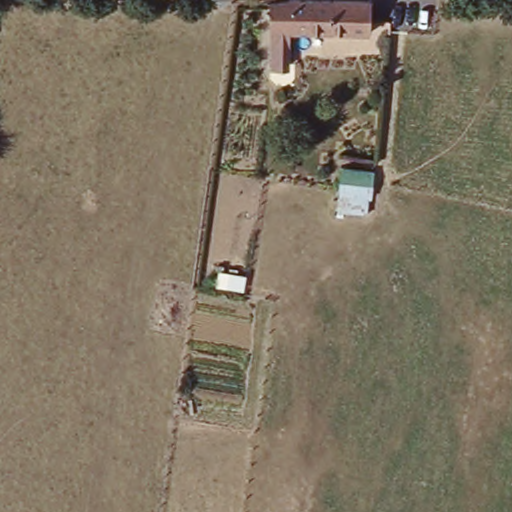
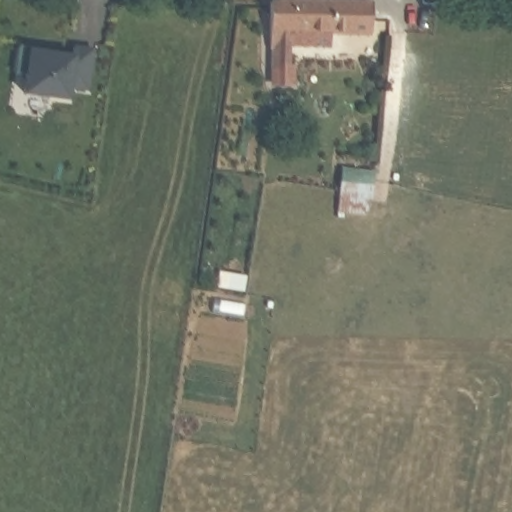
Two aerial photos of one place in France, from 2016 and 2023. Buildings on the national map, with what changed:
unchanged [(271,84),(272,62),(273,7),(284,7),(372,9),(370,39),(294,43),(294,62),(293,82),(271,84)]
new [(39,53),(48,54),(48,58),(70,61),(72,52),(90,55),(85,94),(68,92),(66,104),(22,98),(24,80),(14,78),(18,50),(39,53)]
unchanged [(379,174),(377,206),(342,203),(344,187),(319,184),(320,169),(379,174)]

